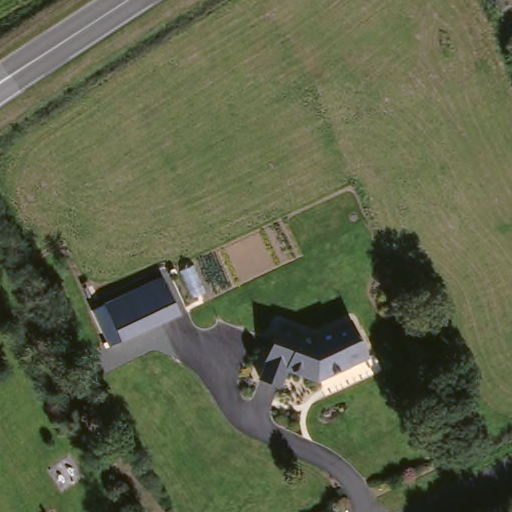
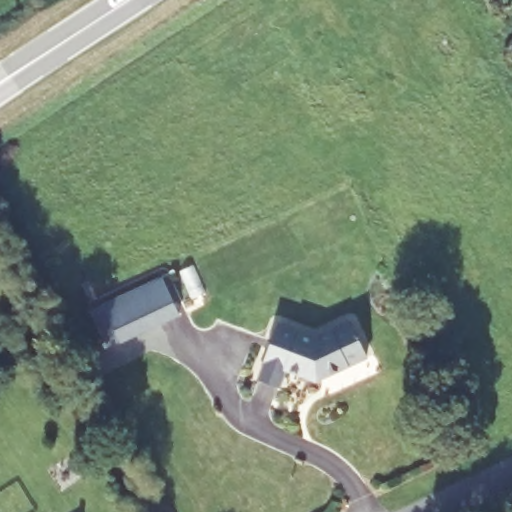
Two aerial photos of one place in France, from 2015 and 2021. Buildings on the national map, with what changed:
unchanged [(94,312),(164,279),(182,315),(113,349),(94,312)]
unchanged [(281,336),(316,348),(351,331),(369,368),(319,391),(291,381),(286,399),(264,392),(281,336)]

